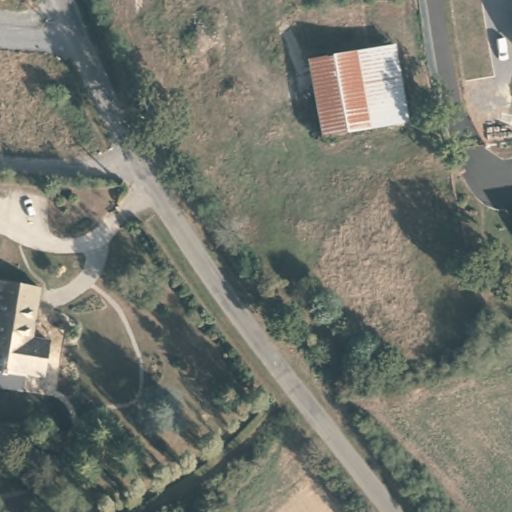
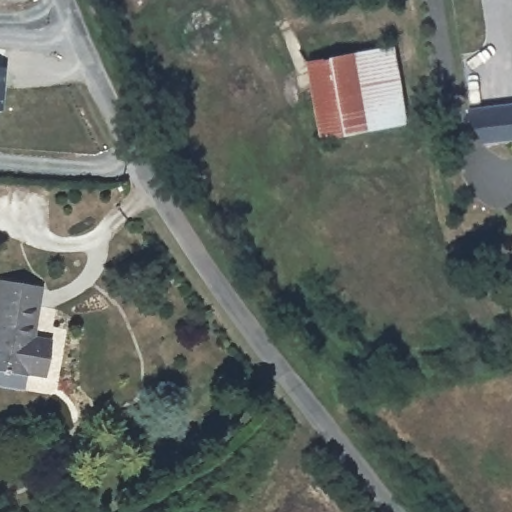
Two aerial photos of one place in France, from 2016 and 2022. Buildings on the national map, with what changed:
unchanged [(308,62),(391,45),(408,117),(324,134),(308,62)]
new [(0,110),(0,66),(4,67),(4,110),(0,110)]
new [(512,101),(512,139),(491,142),(477,114),(475,106),(512,101)]
unchanged [(34,334),(51,335),(49,370),(27,371),(0,370),(0,343),(0,277),(39,280),(34,334)]

